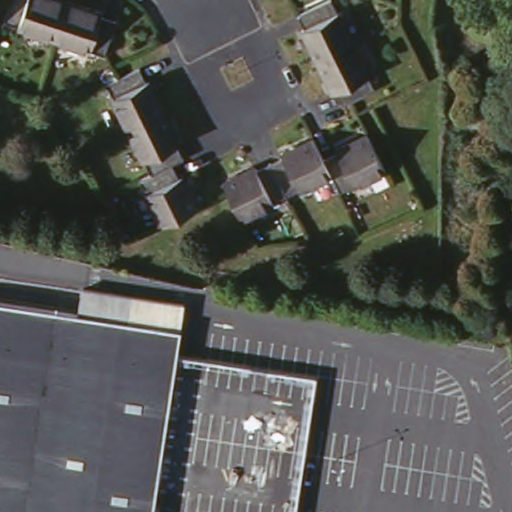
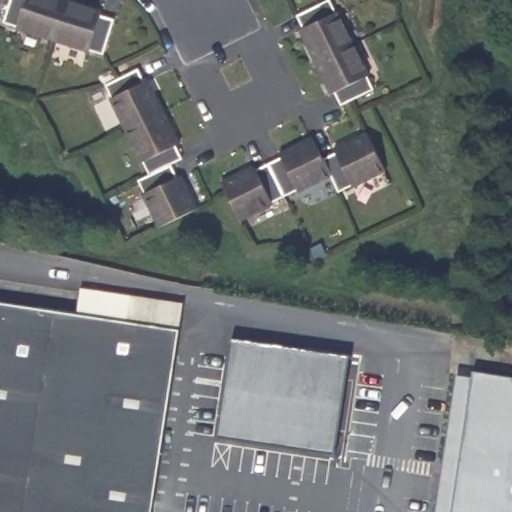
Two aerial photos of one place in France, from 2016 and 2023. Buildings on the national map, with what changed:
unchanged [(99,9),(115,14),(104,49),(90,45),(88,45),(16,22),(14,21),(3,16),(8,0),(80,0),(100,6),(99,9)]
unchanged [(330,0),(343,24),(369,74),(369,77),(374,87),(340,105),(334,91),(331,93),(299,30),(302,28),(295,15),(327,0),(330,0)]
unchanged [(147,80),(154,94),(156,92),(188,155),(184,156),(192,169),(180,175),(187,189),(190,187),(205,219),(169,237),(154,205),(155,205),(148,190),(159,185),(153,172),(150,171),(120,111),(120,109),(114,96),(147,80)]
unchanged [(232,175),(252,163),(254,165),(280,153),(279,150),(310,134),(322,154),(334,148),(334,145),(366,128),(384,165),(338,187),(329,170),(272,197),(269,200),(240,215),(222,180),(232,175)]
unchanged [(76,287),(182,302),(151,512),(0,512),(0,302),(72,313),(76,287)]
new [(347,361),(333,453),(220,439),(234,345),(347,361)]
demolished [(199,380),(184,495),(155,487),(172,373),(199,380)]
new [(456,377),(510,380),(512,388),(512,512),(439,512),(456,377)]

